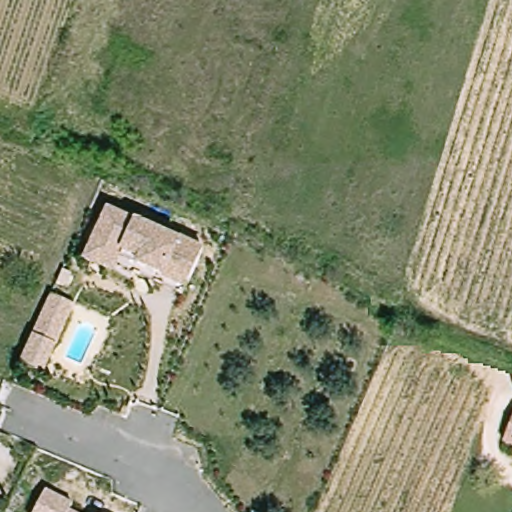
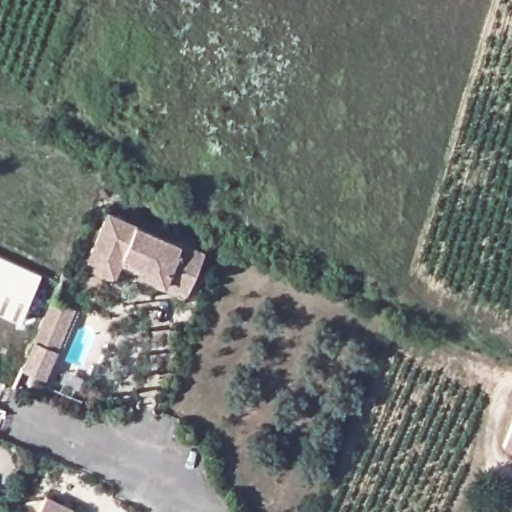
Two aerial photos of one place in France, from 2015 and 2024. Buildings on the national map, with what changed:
unchanged [(112,204),(182,236),(183,234),(208,245),(186,290),(139,268),(138,270),(119,261),(116,267),(89,254),(112,204)]
new [(0,312),(0,256),(40,274),(20,321),(0,312)]
unchanged [(45,317),(54,298),(75,308),(43,376),(22,367),(45,317)]
unchanged [(506,452),(512,432),(512,454),(506,452)]
unchanged [(53,494),(79,508),(77,512),(43,512),(53,494)]

